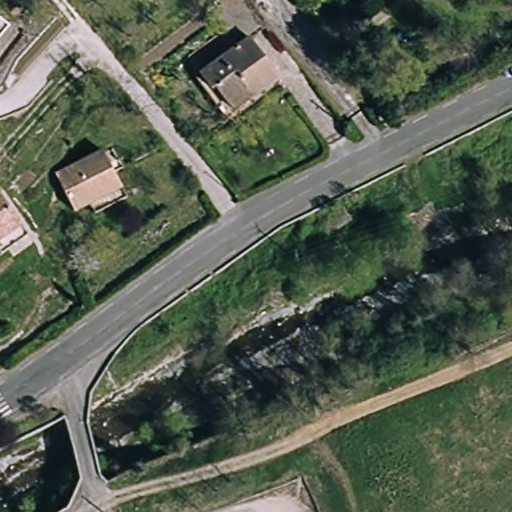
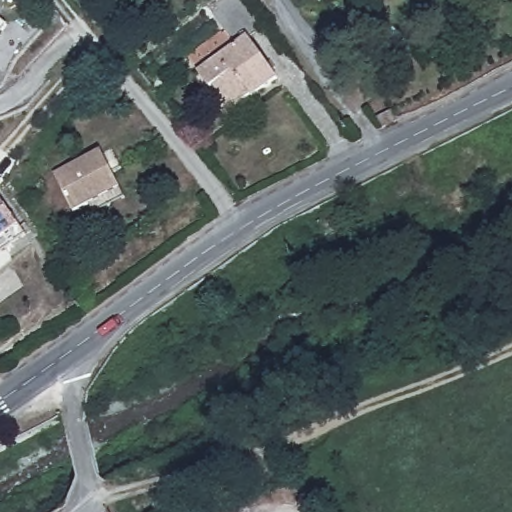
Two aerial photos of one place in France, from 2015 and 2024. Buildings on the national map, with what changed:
unchanged [(8,18),(0,28),(0,11),(8,18)]
unchanged [(251,39),(277,75),(232,108),(215,84),(211,86),(202,75),(251,39)]
unchanged [(89,209),(85,199),(69,206),(52,169),(98,146),(100,151),(110,146),(119,165),(109,170),(117,185),(122,194),(89,209)]
unchanged [(0,256),(0,197),(28,240),(1,257),(0,256)]

